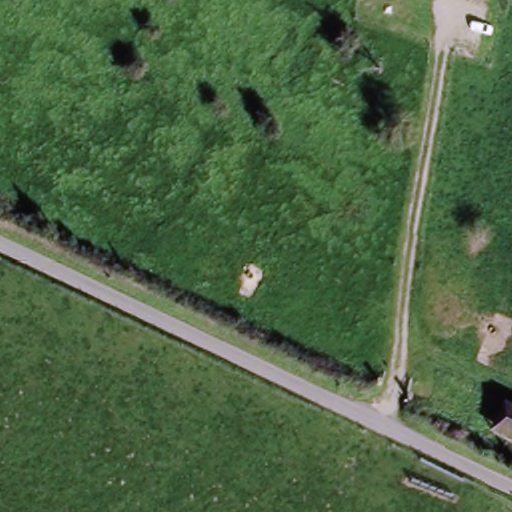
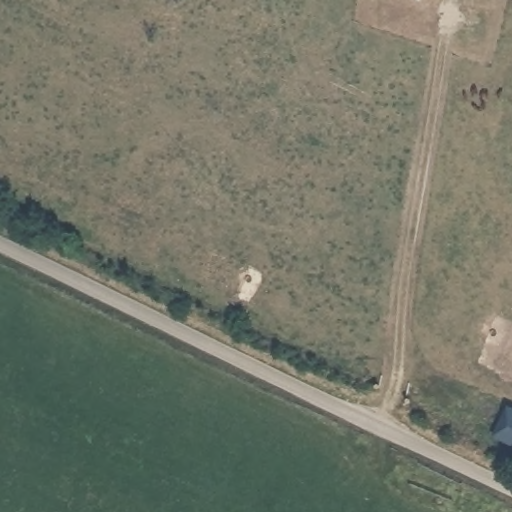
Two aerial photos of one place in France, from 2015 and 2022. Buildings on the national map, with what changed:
unchanged [(512,412),(512,442),(500,437),(512,412)]

